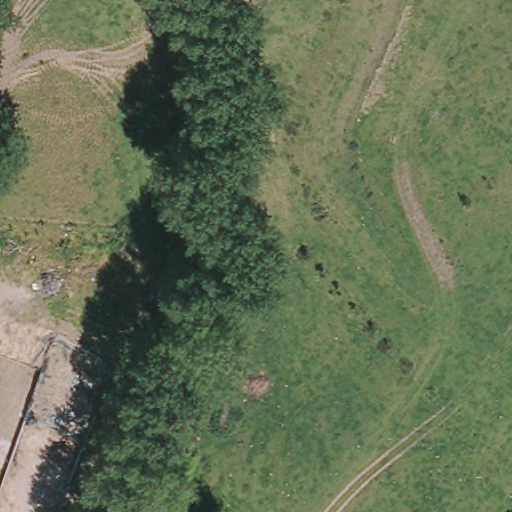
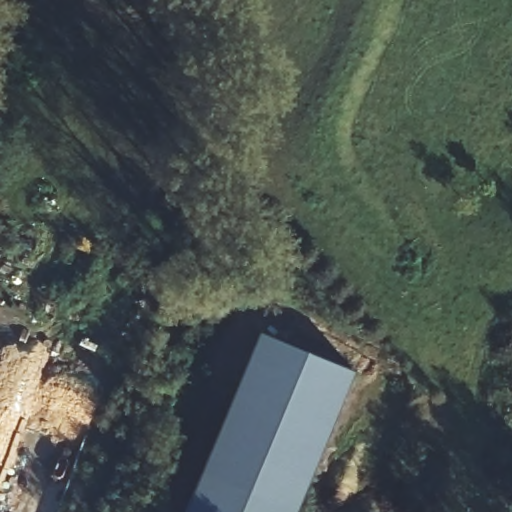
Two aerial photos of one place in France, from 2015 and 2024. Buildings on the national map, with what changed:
new [(294,512),(186,512),(260,331),(353,370),(294,512)]

